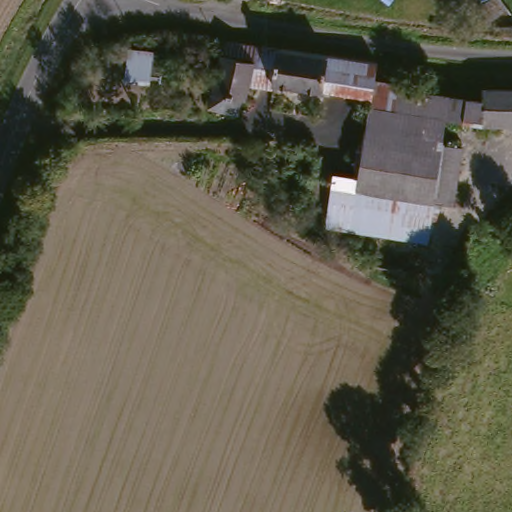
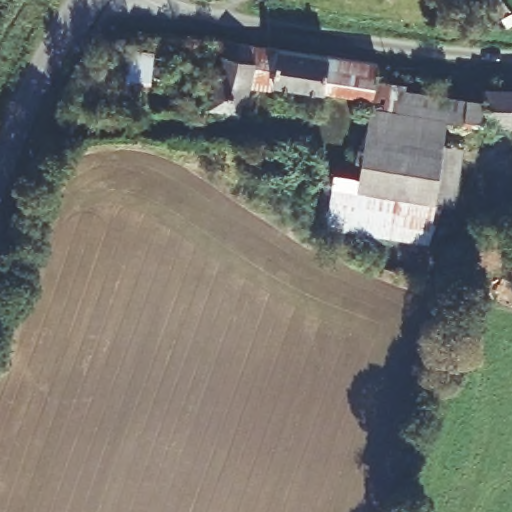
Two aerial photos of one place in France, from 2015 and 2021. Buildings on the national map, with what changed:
unchanged [(503,8),(487,23),(476,9),(488,0),(497,0),(503,8)]
unchanged [(251,82),(247,102),(242,101),(240,112),(212,108),(225,42),(332,57),(328,96),(251,82)]
unchanged [(124,84),(131,49),(170,56),(167,85),(124,84)]
unchanged [(332,57),(376,63),(373,80),(370,100),(328,96),(332,57)]
unchanged [(406,85),(406,89),(484,101),(486,90),(512,92),(512,126),(474,125),(448,121),(369,111),(370,100),(373,80),(406,85)]
unchanged [(335,188),(359,189),(369,111),(448,121),(445,143),(462,146),(452,208),(434,205),(431,237),(330,222),(335,188)]

